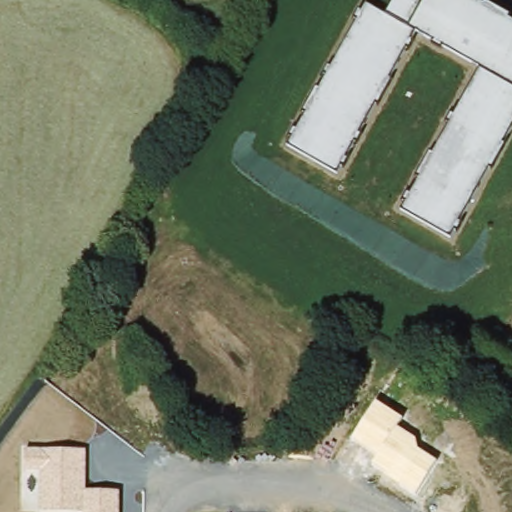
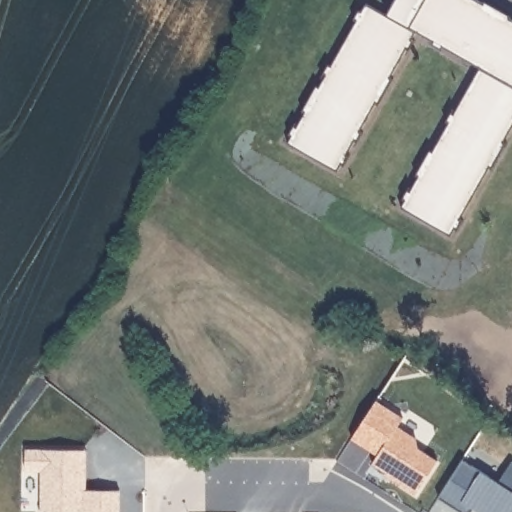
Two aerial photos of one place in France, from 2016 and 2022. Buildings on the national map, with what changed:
unchanged [(484,1),(510,15),(508,19),(512,20),(512,126),(504,140),(507,143),(493,169),(490,168),(450,238),(400,209),(418,178),(415,175),(430,151),(433,153),(482,69),(416,32),(390,78),(392,80),(378,105),(376,104),(337,174),(287,145),(304,113),(302,110),(315,88),(319,89),(367,5),(387,16),(397,0),(475,0),(482,4),(484,1)]
unchanged [(403,417),(397,428),(416,439),(418,451),(437,461),(417,494),(372,464),(377,456),(352,440),(376,402),(403,417)]
unchanged [(87,450),(86,491),(121,491),(120,512),(41,512),(40,475),(25,474),(25,449),(87,450)]
new [(473,509),(470,512),(461,512),(439,499),(463,459),(500,482),(512,462),(512,512),(479,512),(473,509)]

